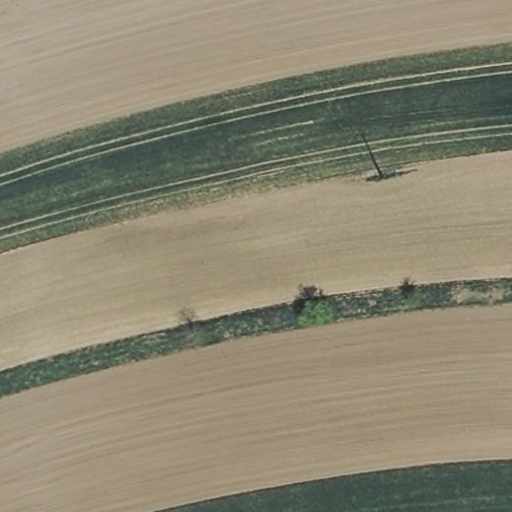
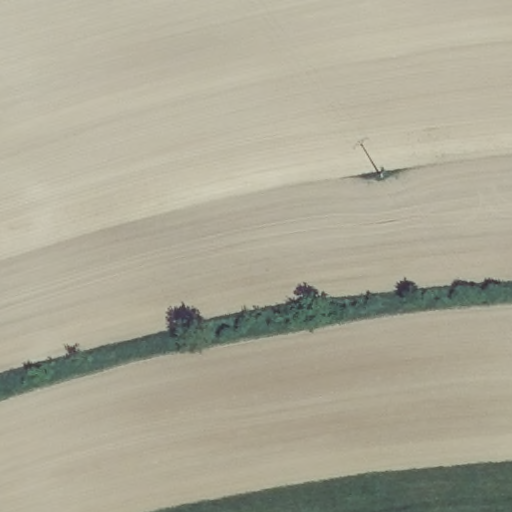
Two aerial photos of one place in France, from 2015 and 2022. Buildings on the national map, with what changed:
[]

